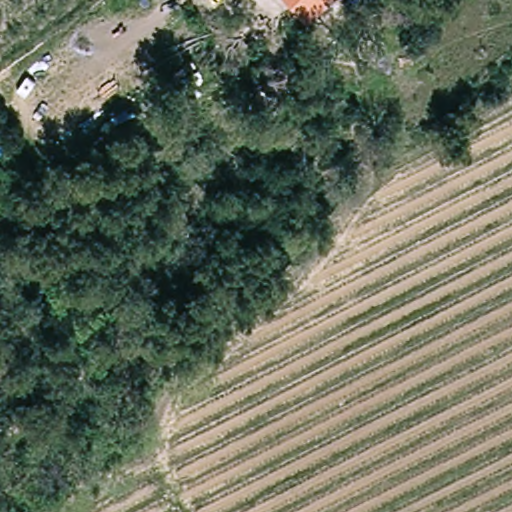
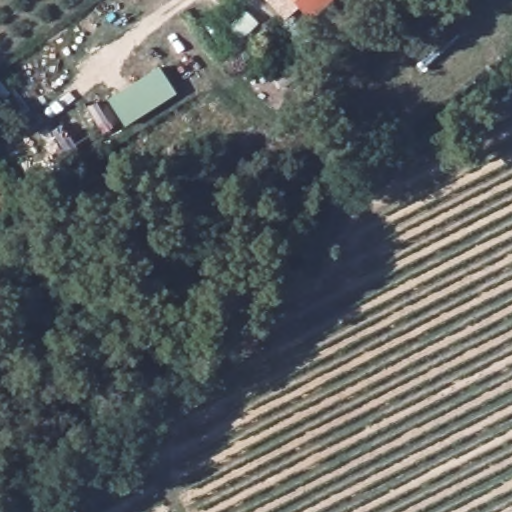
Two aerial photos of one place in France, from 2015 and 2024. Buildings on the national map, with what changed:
new [(285,20),(265,0),(294,0),(301,7),(285,20)]
unchanged [(295,0),(336,0),(314,21),(295,0)]
unchanged [(290,57),(302,74),(281,91),(269,74),(290,57)]
new [(158,67),(177,96),(126,127),(110,99),(158,67)]

